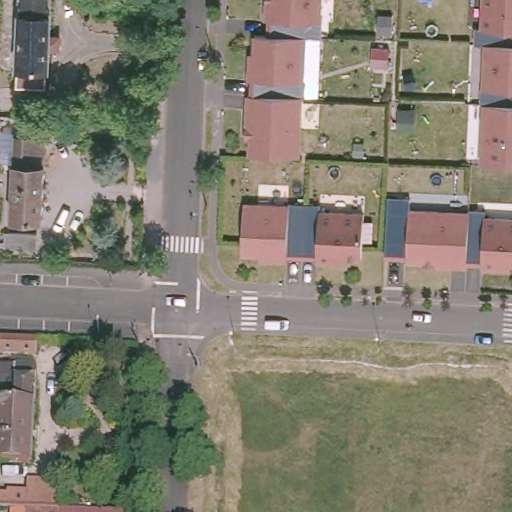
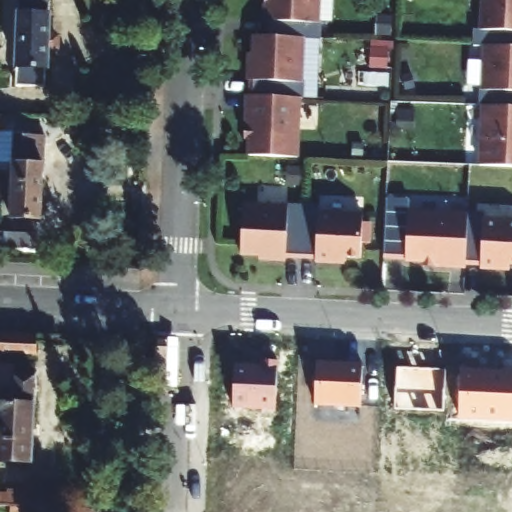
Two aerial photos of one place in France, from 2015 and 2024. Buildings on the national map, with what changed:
unchanged [(43,16),(47,16),(44,68),(37,68),(37,86),(12,85),(16,0),(44,0),(43,16)]
unchanged [(318,21),(320,21),(319,38),(302,38),(272,36),(266,36),(267,21),(264,21),(265,3),(269,3),(269,0),(319,0),(318,21)]
unchanged [(495,46),(485,45),(483,45),(473,45),(474,28),(481,28),(482,0),(512,0),(512,47),(495,46)]
unchanged [(272,36),(302,38),(300,80),(302,81),(302,98),(299,98),(249,96),(250,81),(247,80),(248,62),(252,63),(253,36),(266,36),(272,36)]
unchanged [(482,105),(481,105),(480,105),(480,88),(482,88),(483,45),(485,45),(495,46),(512,47),(512,107),(482,105)]
unchanged [(275,157),(248,156),(249,127),(245,127),(247,95),(249,96),(299,98),(296,158),(275,157)]
unchanged [(512,107),(512,167),(500,166),(480,166),(482,105),(512,107)]
unchanged [(10,140),(40,142),(37,223),(7,222),(10,140)]
unchanged [(300,259),(285,258),(285,260),(267,260),(267,256),(240,254),(242,206),(285,208),(285,205),(302,206),(300,259)]
unchanged [(320,207),(320,213),(362,215),(360,258),(333,257),(333,263),(315,262),(315,259),(300,259),(302,206),(320,207)]
unchanged [(465,258),(465,264),(465,267),(433,265),(433,261),(405,260),(407,211),(467,214),(465,258)]
unchanged [(467,212),(485,212),(485,219),(512,220),(512,263),(498,262),(497,268),(480,267),(480,265),(465,264),(465,258),(467,214),(467,212)]
unchanged [(8,232),(37,233),(36,248),(7,247),(8,232)]
unchanged [(1,353),(0,353),(0,337),(2,337),(1,353)]
new [(232,408),(235,364),(264,365),(265,359),(278,361),(276,411),(232,408)]
new [(315,405),(317,362),(363,364),(360,408),(315,405)]
new [(395,408),(397,367),(445,370),(444,410),(395,408)]
new [(458,419),(462,368),(512,371),(512,422),(458,419)]
unchanged [(0,389),(9,389),(10,376),(31,377),(27,463),(0,462),(0,389)]
new [(8,505),(0,505),(0,493),(9,493),(9,490),(32,491),(32,478),(62,480),(62,507),(131,510),(131,512),(27,512),(27,506),(8,505)]

